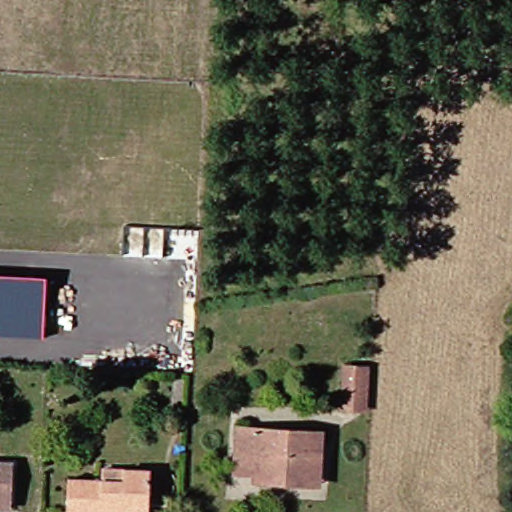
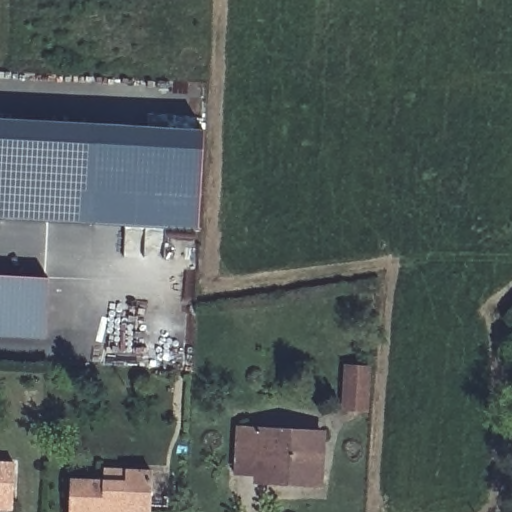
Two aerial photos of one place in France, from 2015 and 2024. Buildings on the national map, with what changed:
new [(202,231),(0,218),(0,118),(207,133),(202,231)]
unchanged [(42,336),(0,334),(0,272),(46,275),(42,336)]
unchanged [(363,407),(341,407),(345,364),(367,365),(363,407)]
unchanged [(260,483),(260,474),(237,473),(240,425),(322,429),(319,473),(319,484),(260,483)]
unchanged [(16,495),(16,501),(0,501),(0,456),(17,457),(16,495)]
unchanged [(73,480),(106,481),(106,466),(130,467),(152,468),(152,512),(130,512),(129,512),(72,512),(73,480)]

